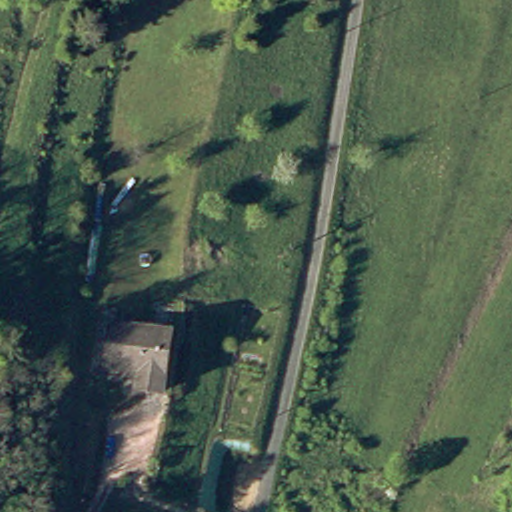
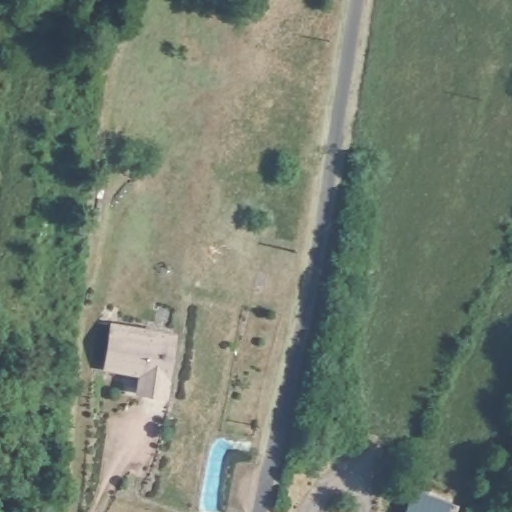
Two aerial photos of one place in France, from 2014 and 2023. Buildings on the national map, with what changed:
unchanged [(137,379),(137,360),(105,356),(110,316),(167,322),(162,381),(137,379)]
new [(450,498),(446,512),(405,512),(413,486),(450,498)]

